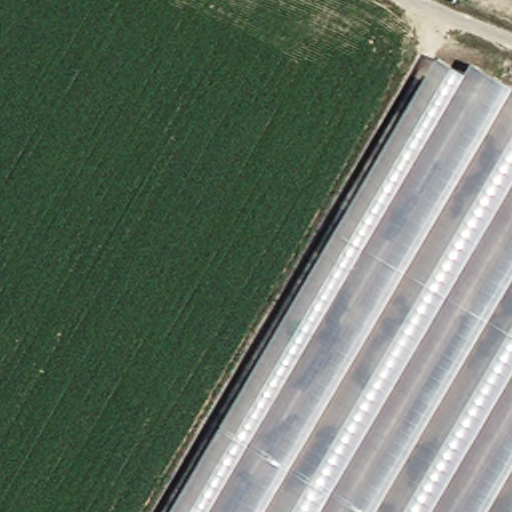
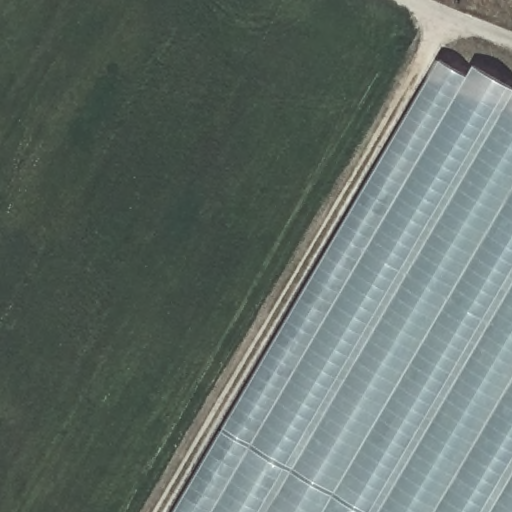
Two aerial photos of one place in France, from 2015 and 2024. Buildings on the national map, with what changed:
unchanged [(163,512),(432,55),(459,69),(464,61),(512,88),(512,512),(163,512)]

